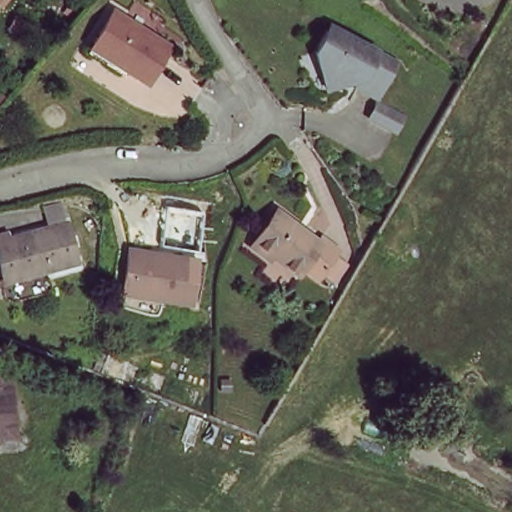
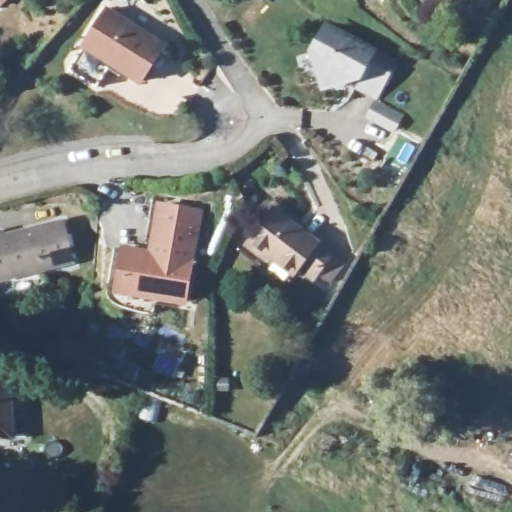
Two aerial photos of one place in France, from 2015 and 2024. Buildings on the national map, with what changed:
unchanged [(88,52),(95,44),(120,15),(169,60),(141,92),(125,79),(120,84),(88,52)]
unchanged [(380,92),(404,111),(393,132),(359,115),(367,102),(315,75),(308,50),(334,20),(399,62),(380,92)]
new [(203,208),(193,263),(147,255),(125,250),(127,242),(147,246),(157,200),(203,208)]
unchanged [(308,272),(303,278),(274,256),(270,261),(256,246),(282,215),(323,248),(329,244),(342,256),(320,282),(308,272)]
unchanged [(0,268),(0,240),(8,237),(37,229),(40,236),(67,226),(78,262),(19,280),(5,285),(1,272),(0,268)]
unchanged [(120,288),(125,250),(193,263),(189,305),(158,300),(119,292),(120,288)]
unchanged [(0,285),(1,287),(0,287),(0,285)]
unchanged [(13,431),(0,431),(0,371),(14,370),(13,431)]

